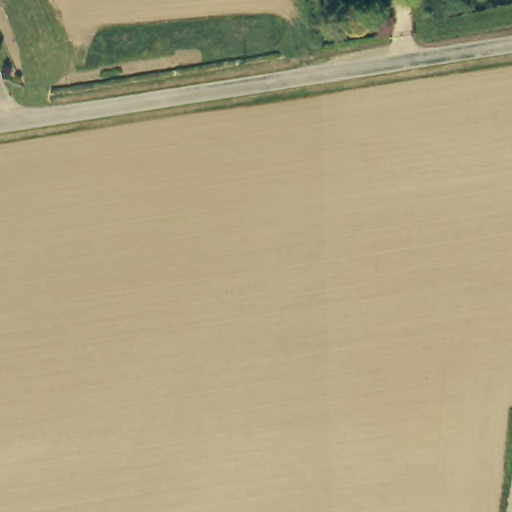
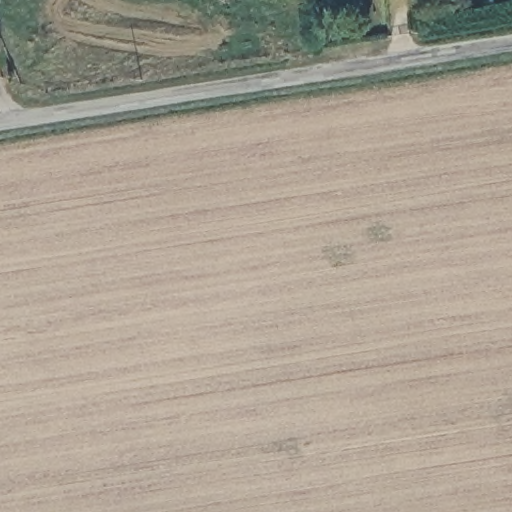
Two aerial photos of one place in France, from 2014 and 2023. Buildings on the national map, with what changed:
[]

